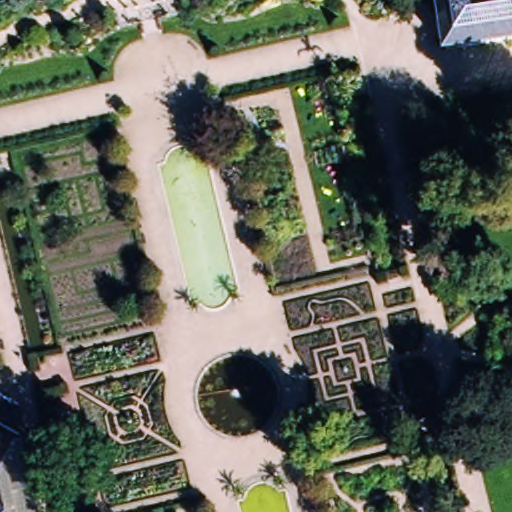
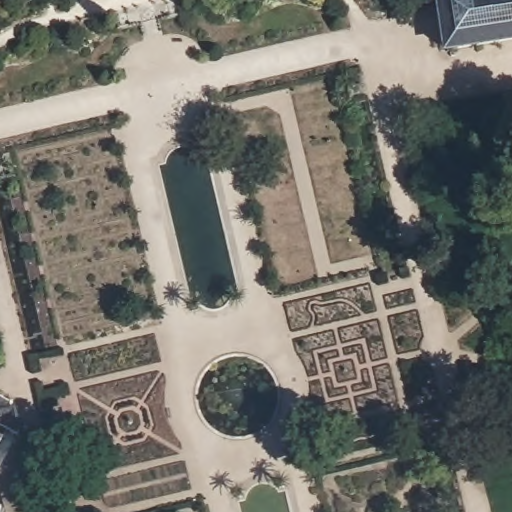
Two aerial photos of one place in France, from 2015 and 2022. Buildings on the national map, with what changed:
unchanged [(68,0),(76,0),(69,2),(68,0)]
unchanged [(106,0),(116,0),(107,2),(106,0)]
unchanged [(453,54),(453,57),(442,59),(434,5),(446,4),(446,0),(512,0),(512,46),(453,54)]
unchanged [(41,512),(5,512),(10,502),(0,496),(0,395),(17,408),(41,512)]
unchanged [(0,496),(10,502),(5,512),(0,512),(0,496)]

